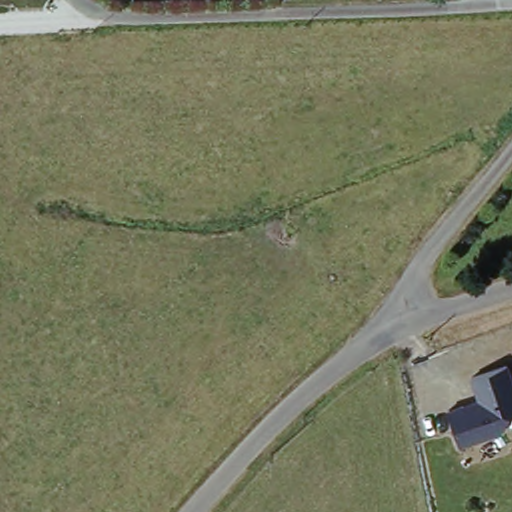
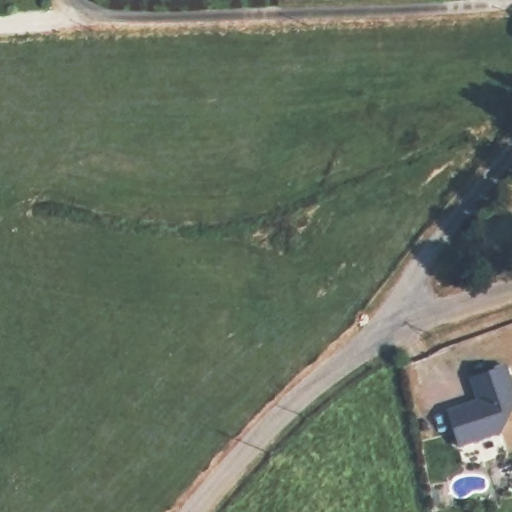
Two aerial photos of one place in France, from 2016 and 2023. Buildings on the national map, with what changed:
unchanged [(476,399),(470,377),(507,365),(512,380),(512,409),(500,434),(458,446),(447,408),(476,399)]

